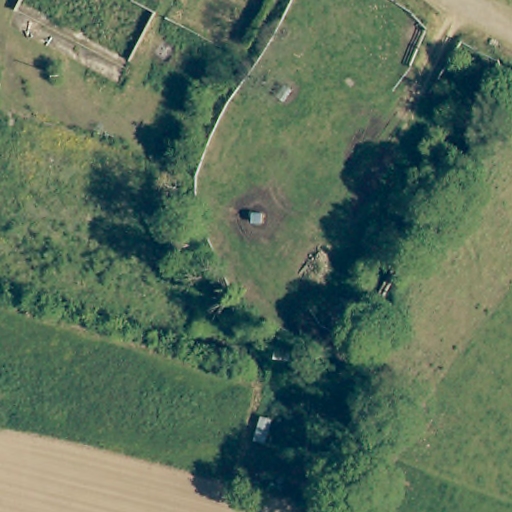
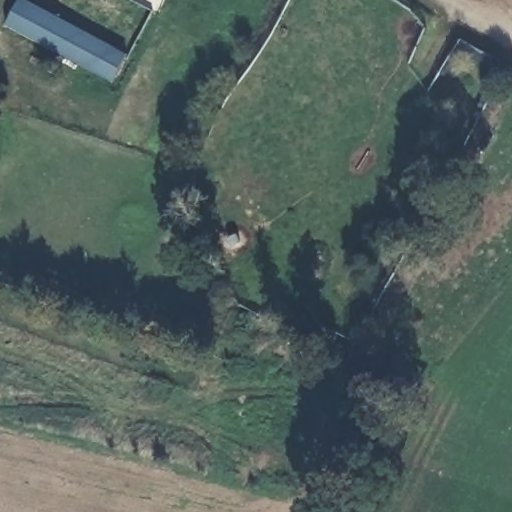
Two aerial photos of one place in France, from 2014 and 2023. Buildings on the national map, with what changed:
new [(128,55),(112,83),(7,27),(22,0),(25,0),(128,55)]

